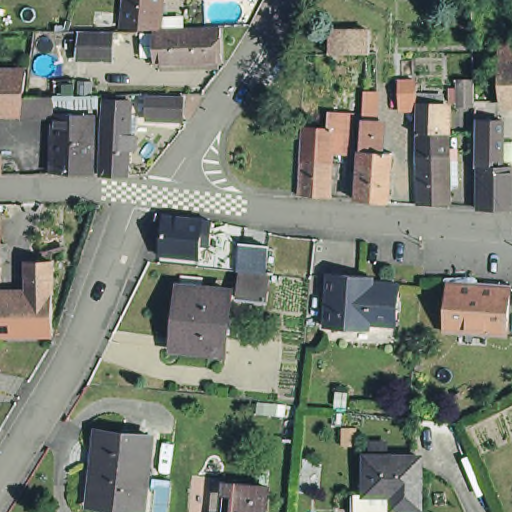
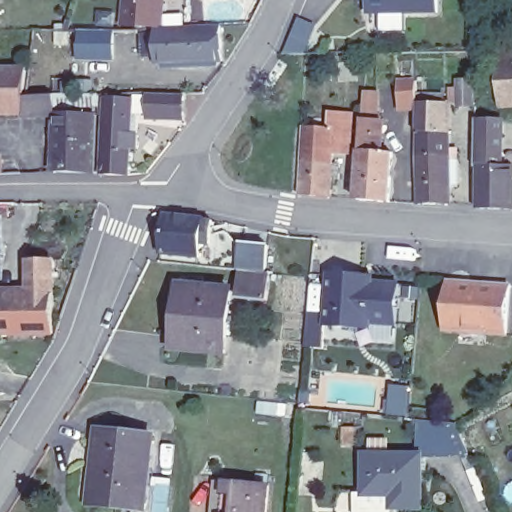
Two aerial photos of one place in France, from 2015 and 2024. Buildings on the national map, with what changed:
unchanged [(85,34),(96,34),(99,15),(128,18),(130,0),(167,0),(165,20),(164,31),(160,32),(127,30),(118,30),(118,34),(118,36),(117,63),(84,63),(85,34)]
new [(369,18),(365,0),(448,0),(449,18),(369,18)]
unchanged [(373,51),(334,51),(334,30),(374,30),(373,51)]
unchanged [(225,31),(226,66),(161,67),(160,33),(225,31)]
unchanged [(500,49),(512,48),(512,106),(504,107),(500,49)]
unchanged [(30,75),(25,116),(0,116),(0,74),(30,75)]
unchanged [(469,79),(470,104),(456,105),(455,79),(469,79)]
unchanged [(414,84),(415,106),(414,106),(398,106),(397,84),(414,84)]
unchanged [(393,201),(360,198),(363,151),(364,124),(364,119),(366,91),(381,92),(380,120),(379,125),(378,153),(396,154),(393,201)]
unchanged [(186,122),(151,121),(151,99),(186,100),(186,122)]
unchanged [(57,112),(57,101),(103,100),(103,111),(57,112)]
unchanged [(455,175),(456,189),(449,189),(450,208),(417,209),(416,161),(416,135),(416,106),(436,106),(437,100),(443,100),(443,106),(443,135),(447,135),(448,161),(448,175),(455,175)]
unchanged [(109,151),(110,104),(134,104),(131,180),(106,179),(108,151),(109,151)]
unchanged [(344,161),(344,177),(335,177),(334,196),(304,193),(306,146),(308,127),(337,129),(337,128),(334,128),(334,111),(336,111),(356,113),(354,151),(336,150),(336,160),(344,161)]
unchanged [(96,177),(55,176),(56,117),(98,119),(96,177)]
unchanged [(512,170),(512,211),(478,212),(479,123),(509,121),(508,170),(512,170)]
unchanged [(0,179),(0,163),(3,163),(3,179),(0,179)]
unchanged [(3,279),(0,279),(0,204),(3,204),(3,279)]
unchanged [(164,258),(168,220),(208,223),(207,225),(216,226),(213,249),(205,248),(203,262),(164,258)]
unchanged [(238,302),(241,275),(239,275),(241,248),(269,250),(276,251),(274,278),(270,278),(268,305),(238,302)]
unchanged [(2,335),(1,294),(28,293),(28,259),(56,259),(57,293),(58,334),(2,335)]
unchanged [(354,268),(358,271),(361,276),(407,280),(403,320),(376,317),(376,323),(333,320),(337,267),(354,268)]
unchanged [(177,331),(181,291),(181,280),(203,282),(203,293),(231,295),(226,358),(183,354),(175,354),(177,331)]
unchanged [(451,286),(512,289),(512,296),(509,340),(447,335),(451,286)]
unchanged [(376,323),(376,317),(403,320),(401,339),(331,333),(333,320),(376,323)]
demolished [(334,404),(335,392),(346,393),(344,405),(334,404)]
unchanged [(98,473),(102,434),(154,440),(150,479),(98,473)]
unchanged [(409,500),(374,500),(374,462),(429,462),(428,512),(408,512),(409,500)]
unchanged [(170,512),(137,512),(137,511),(93,505),(98,473),(150,479),(149,486),(173,488),(170,512)]
unchanged [(229,483),(271,488),(269,512),(226,512),(229,483)]

